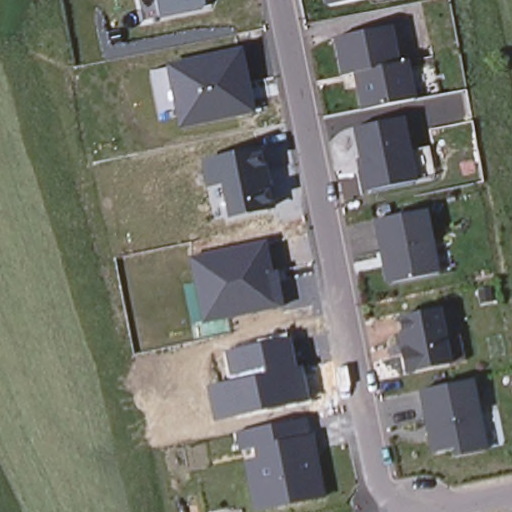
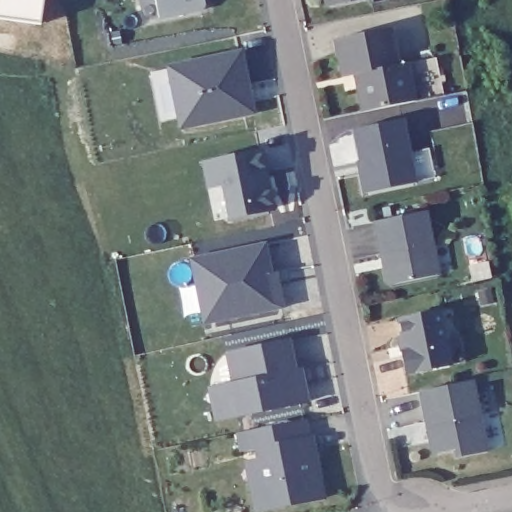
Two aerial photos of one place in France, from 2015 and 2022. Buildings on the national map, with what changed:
new [(40,25),(0,20),(0,0),(43,0),(40,25)]
unchanged [(210,10),(162,19),(158,0),(207,0),(210,10)]
unchanged [(332,6),(327,3),(327,0),(360,0),(332,6)]
unchanged [(390,28),(398,64),(407,63),(415,101),(363,111),(355,74),(343,77),(335,39),(390,28)]
unchanged [(257,115),(180,131),(167,66),(244,50),(257,115)]
unchanged [(362,160),(355,129),(403,119),(416,182),(370,191),(368,192),(362,160)]
unchanged [(218,187),(206,189),(201,159),(263,146),(275,209),(226,218),(218,187)]
unchanged [(371,221),(421,211),(428,245),(443,242),(448,270),(434,273),(434,274),(389,284),(383,280),(380,267),(377,254),(371,221)]
unchanged [(285,307),(204,324),(190,256),(272,240),(285,307)]
unchanged [(403,336),(400,319),(440,310),(452,364),(411,373),(407,370),(403,355),(400,337),(403,336)]
unchanged [(207,388),(230,382),(225,352),(292,337),(297,367),(302,366),(308,401),(212,420),(207,388)]
unchanged [(421,391),(472,380),(487,450),(458,456),(457,449),(439,452),(433,448),(430,436),(428,424),(421,391)]
unchanged [(309,435),(312,434),(317,454),(312,455),(316,474),(321,473),(326,495),(258,509),(253,482),(265,479),(259,447),(243,450),(240,431),(260,427),(305,417),(309,435)]

